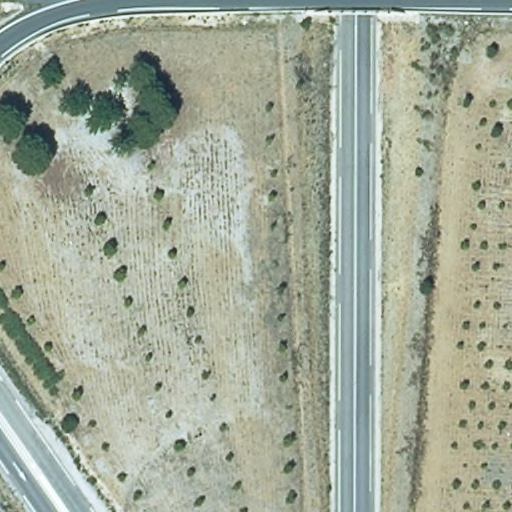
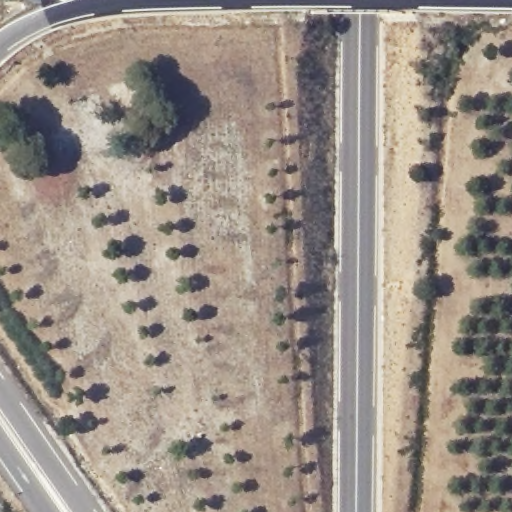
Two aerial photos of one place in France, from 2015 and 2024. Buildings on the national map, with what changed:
unchanged [(45,141),(10,148),(5,121),(41,116),(45,141)]

